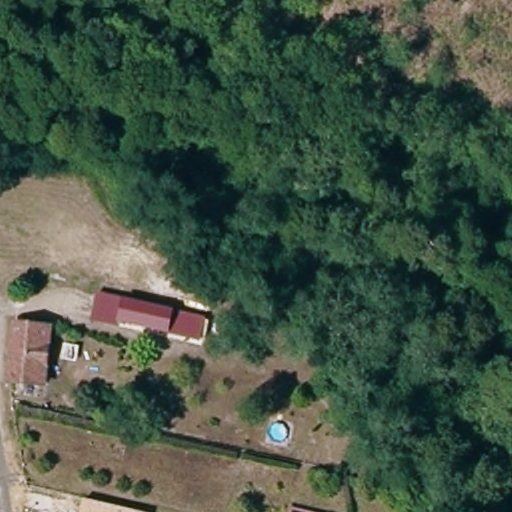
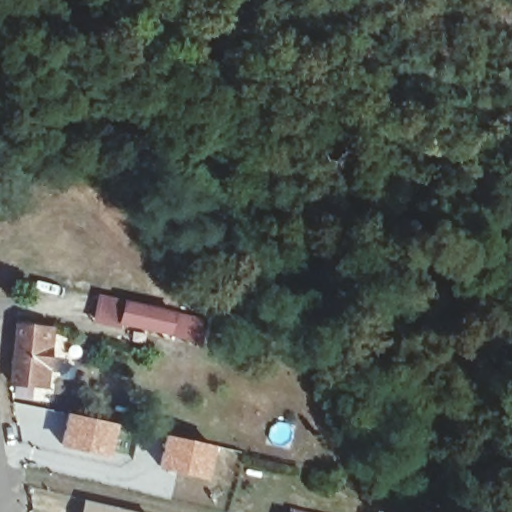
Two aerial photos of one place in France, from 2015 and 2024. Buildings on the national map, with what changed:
unchanged [(190,314),(185,337),(182,336),(80,312),(85,290),(190,314)]
unchanged [(49,330),(44,386),(11,382),(17,327),(49,330)]
new [(114,423),(107,455),(58,445),(65,412),(114,423)]
new [(212,445),(206,478),(156,469),(162,433),(212,445)]
unchanged [(83,500),(138,512),(80,512),(83,500)]
demolished [(403,503),(405,512),(381,512),(380,507),(403,503)]
unchanged [(297,511),(299,512),(296,512),(297,511)]

